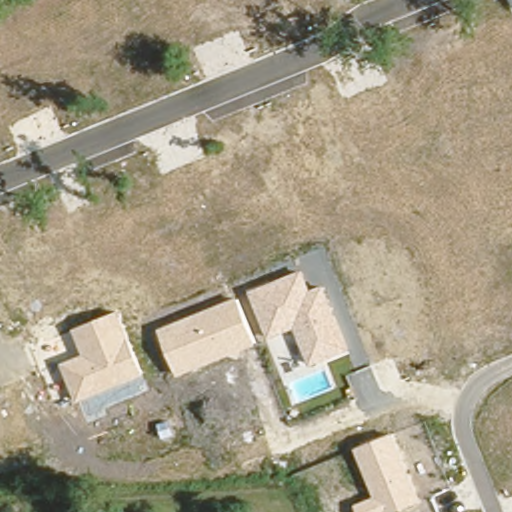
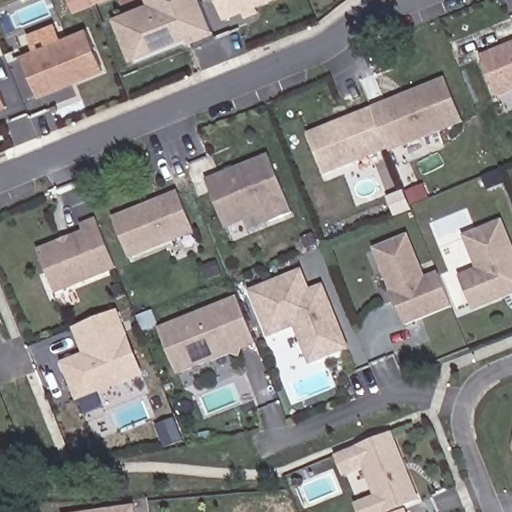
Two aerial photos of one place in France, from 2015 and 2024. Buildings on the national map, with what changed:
new [(210,32),(187,41),(185,35),(129,58),(114,19),(163,0),(198,0),(210,32)]
new [(149,5),(147,0),(163,0),(149,5)]
new [(221,17),(215,0),(264,0),(221,17)]
new [(254,4),(257,11),(244,16),(240,9),(254,4)]
new [(85,28),(101,69),(37,93),(21,53),(85,28)]
new [(478,56),(512,42),(512,93),(496,99),(478,56)]
new [(464,124),(387,154),(382,148),(367,109),(446,77),(464,124)]
new [(0,106),(0,91),(5,103),(0,106)]
new [(367,109),(382,148),(318,173),(303,134),(367,109)]
new [(216,174),(265,154),(286,210),(264,219),(260,209),(234,219),(220,225),(213,206),(202,179),(216,174)]
new [(220,167),(227,165),(229,168),(221,171),(220,167)]
new [(175,190),(190,228),(124,254),(109,215),(175,190)]
new [(80,228),(77,222),(93,216),(112,263),(50,288),(34,246),(80,228)]
new [(512,296),(473,312),(460,276),(475,271),(462,236),(502,221),(512,246),(512,296)]
new [(424,276),(437,269),(453,307),(406,328),(373,246),(407,233),(424,276)]
unchanged [(312,290),(325,285),(352,353),(310,369),(295,329),(268,339),(250,292),(303,271),(312,290)]
unchanged [(179,376),(159,329),(239,297),(260,344),(179,376)]
unchanged [(79,400),(64,363),(85,355),(75,330),(120,312),(145,373),(79,400)]
unchanged [(399,512),(360,512),(356,504),(375,497),(355,448),(395,433),(422,503),(399,512)]
new [(135,512),(110,512),(134,508),(135,512)]

